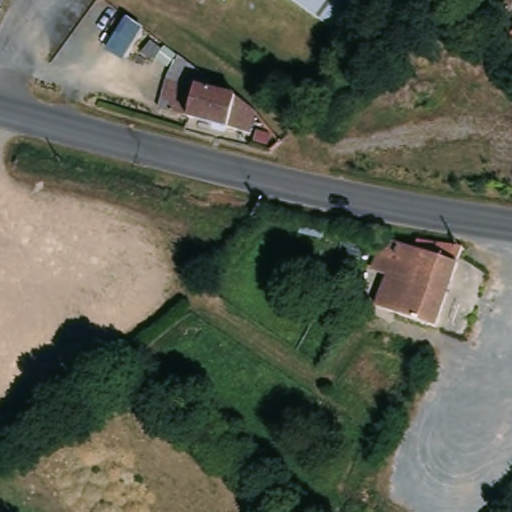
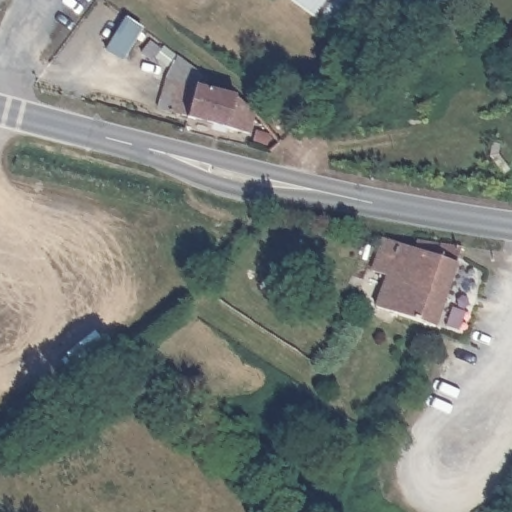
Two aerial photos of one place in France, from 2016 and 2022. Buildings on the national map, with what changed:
unchanged [(209,1),(208,0),(210,0),(209,1)]
unchanged [(335,22),(302,0),(350,0),(335,22)]
unchanged [(207,76),(219,78),(222,79),(220,91),(249,97),(267,113),(262,134),(198,117),(205,86),(207,76)]
unchanged [(167,110),(175,78),(205,86),(198,117),(167,110)]
unchanged [(441,327),(378,309),(388,270),(377,267),(384,240),(415,246),(417,239),(462,246),(441,327)]

